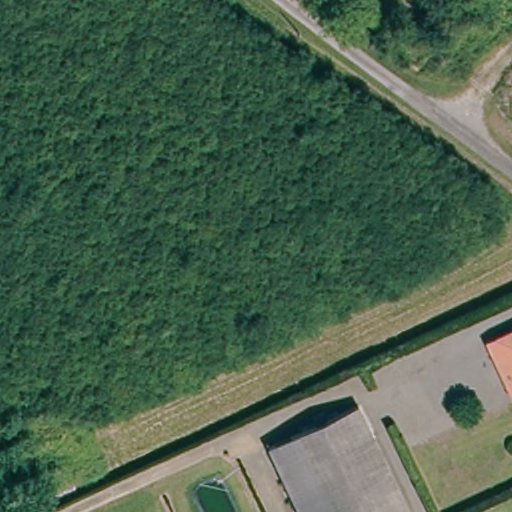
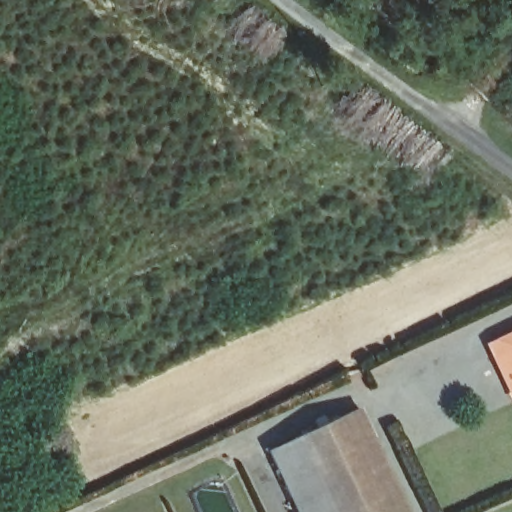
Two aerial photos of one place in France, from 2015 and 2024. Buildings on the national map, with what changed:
unchanged [(493,343),(504,338),(512,335),(512,383),(493,343)]
unchanged [(408,512),(296,512),(267,451),(360,407),(408,512)]

